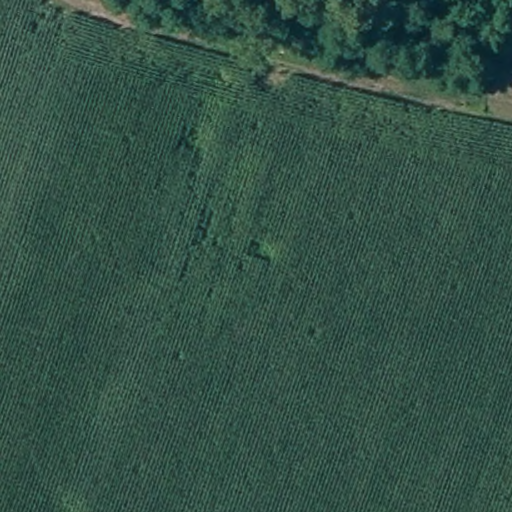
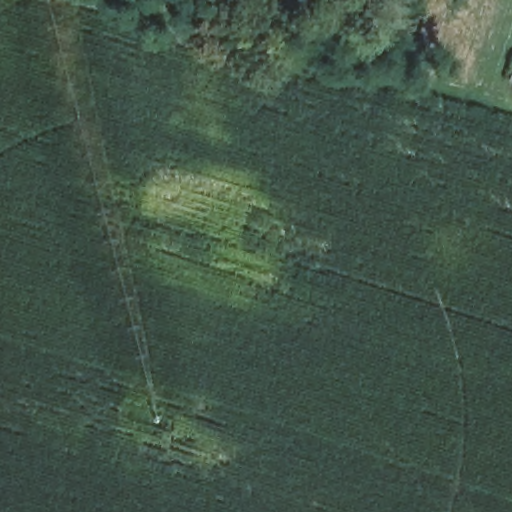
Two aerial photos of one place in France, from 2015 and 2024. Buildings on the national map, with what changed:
unchanged [(512,60),(512,84),(503,80),(512,60)]

